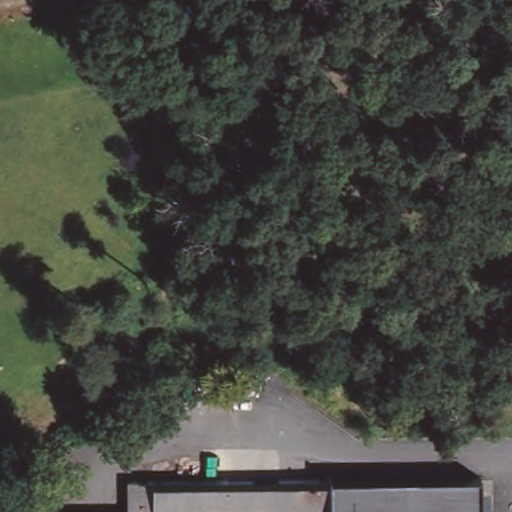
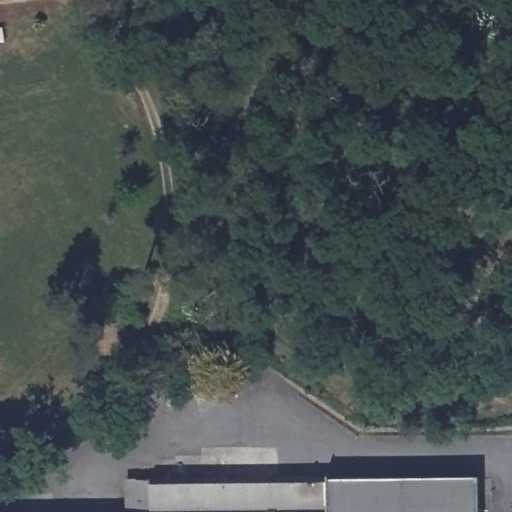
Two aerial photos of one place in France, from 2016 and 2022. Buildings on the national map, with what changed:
unchanged [(102,0),(106,0),(104,2),(102,0)]
unchanged [(238,398),(179,398),(179,373),(238,373),(238,398)]
unchanged [(162,461),(174,461),(174,456),(200,456),(200,448),(278,447),(278,478),(359,477),(479,475),(479,512),(112,512),(163,512),(162,461)]
unchanged [(3,512),(0,512),(0,500),(3,500),(3,512)]

